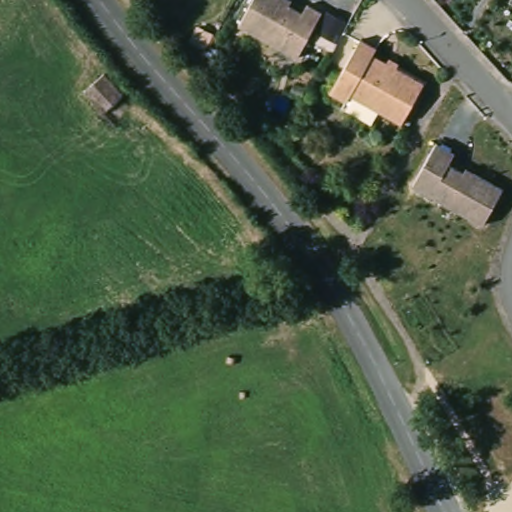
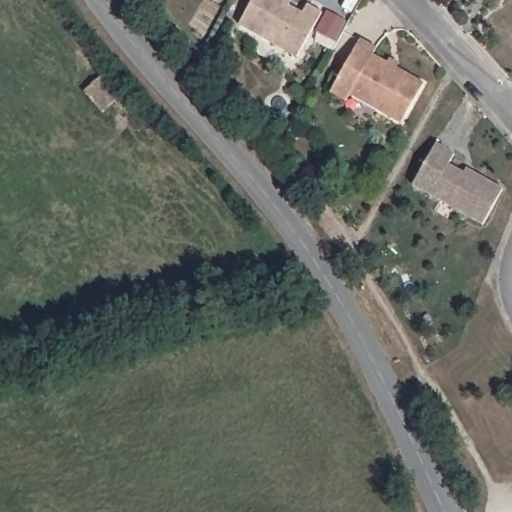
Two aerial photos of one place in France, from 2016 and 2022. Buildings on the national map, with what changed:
unchanged [(315,9),(289,54),(231,22),(243,0),(282,0),(281,2),(295,9),(300,1),(315,9)]
unchanged [(351,95),(347,101),(331,92),(363,39),(379,49),(375,55),(425,86),(401,126),(351,95)]
unchanged [(415,187),(439,145),(457,156),(451,167),(466,175),(469,171),(477,175),(505,192),(485,228),(415,187)]

